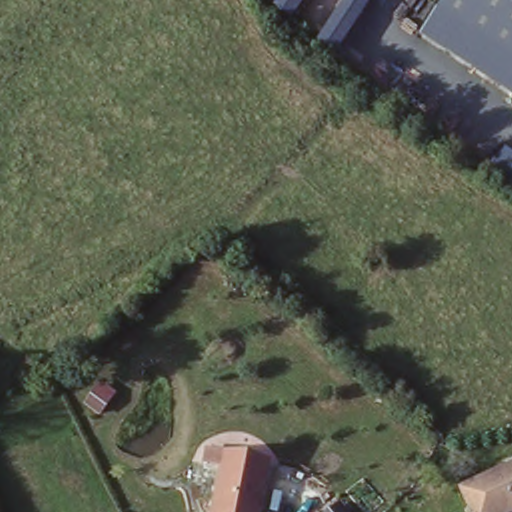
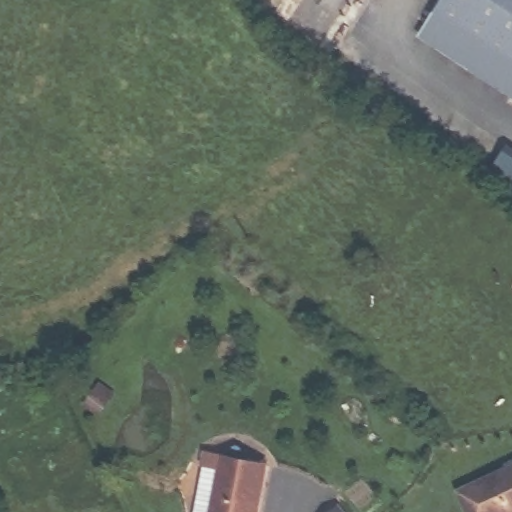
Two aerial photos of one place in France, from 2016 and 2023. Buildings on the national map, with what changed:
unchanged [(271,10),(278,0),(305,0),(291,21),(271,10)]
unchanged [(342,0),(372,0),(335,57),(313,44),(342,0)]
unchanged [(419,39),(444,0),(512,0),(512,97),(419,39)]
unchanged [(512,151),(512,194),(490,179),(509,150),(512,151)]
unchanged [(201,465),(205,449),(270,463),(260,512),(210,512),(218,468),(201,465)]
unchanged [(510,512),(468,512),(459,500),(512,462),(512,511),(510,512)]
unchanged [(348,512),(327,512),(340,502),(348,512)]

